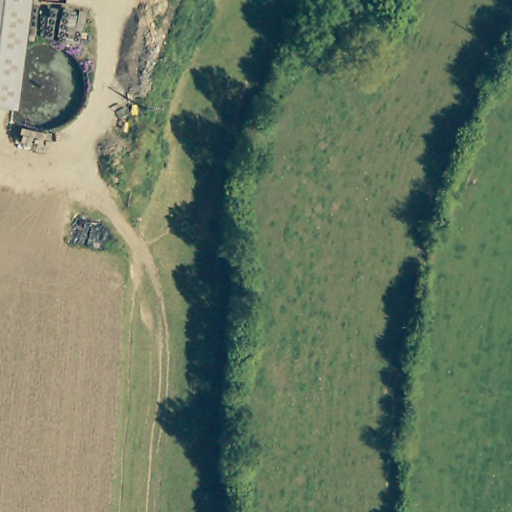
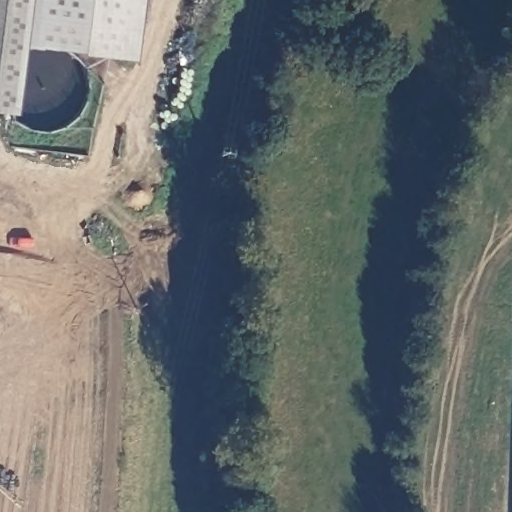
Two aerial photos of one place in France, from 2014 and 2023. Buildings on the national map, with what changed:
unchanged [(0,117),(0,0),(27,0),(12,119),(0,117)]
new [(137,0),(130,56),(21,45),(27,0),(137,0)]

